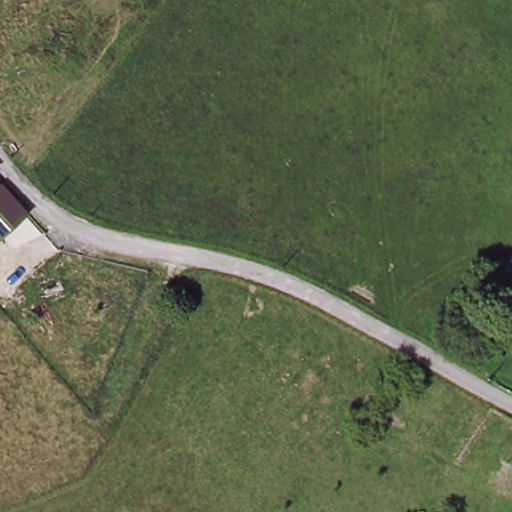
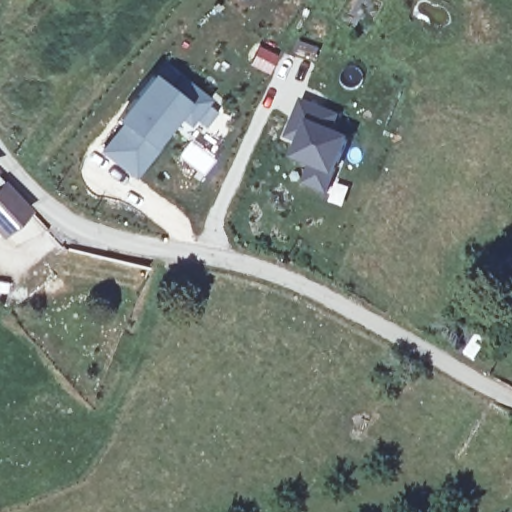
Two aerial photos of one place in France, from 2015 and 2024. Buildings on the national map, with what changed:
new [(188,125),(177,114),(155,144),(160,147),(135,178),(100,152),(123,124),(116,118),(150,71),(172,87),(180,74),(210,99),(188,125)]
new [(340,116),(332,133),(350,141),(333,178),(325,194),(303,184),(310,168),(290,159),(297,141),(283,137),(300,98),(340,116)]
unchanged [(22,205),(0,224),(0,181),(22,205)]

